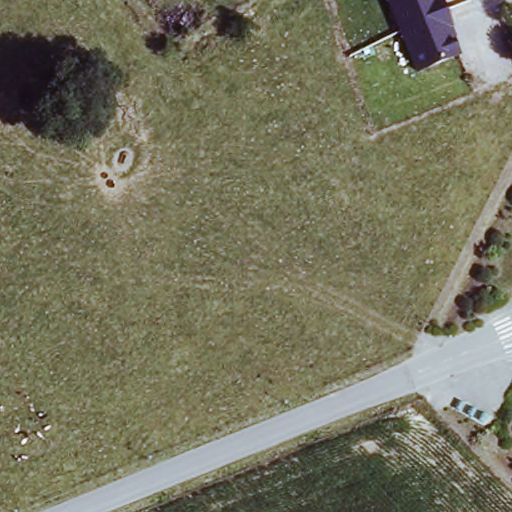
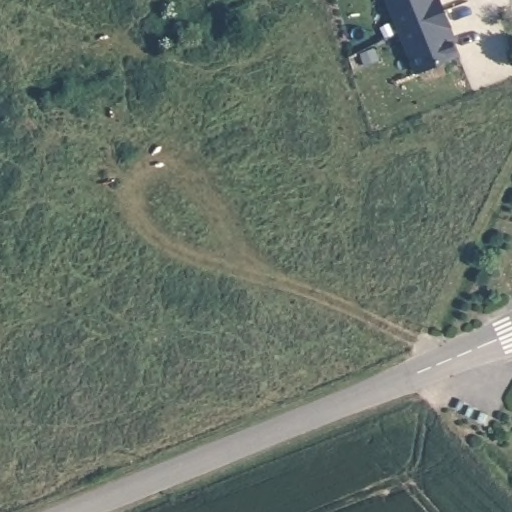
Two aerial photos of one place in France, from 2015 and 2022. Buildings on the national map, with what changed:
unchanged [(446,16),(459,57),(415,76),(386,0),(439,0),(446,16)]

